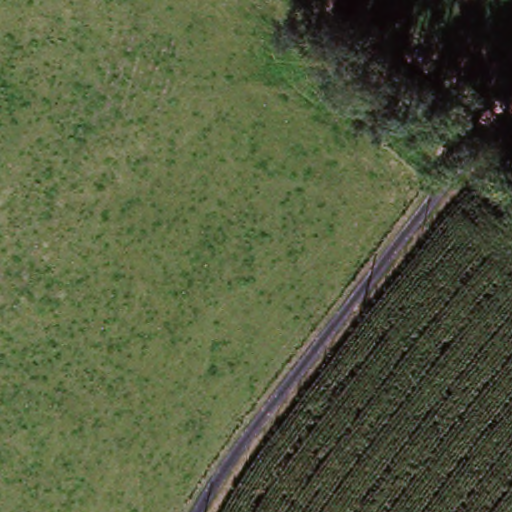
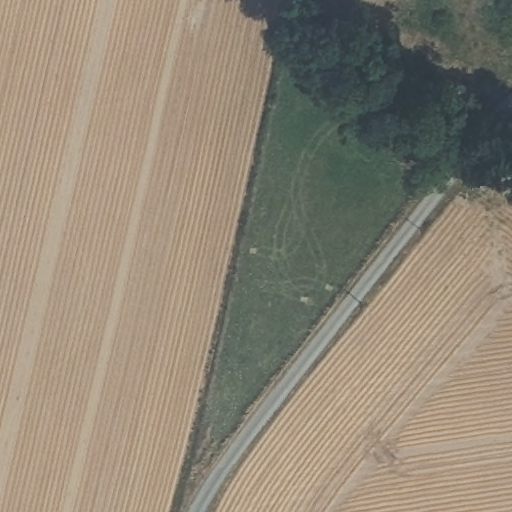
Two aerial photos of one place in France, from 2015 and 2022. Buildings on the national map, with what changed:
[]

